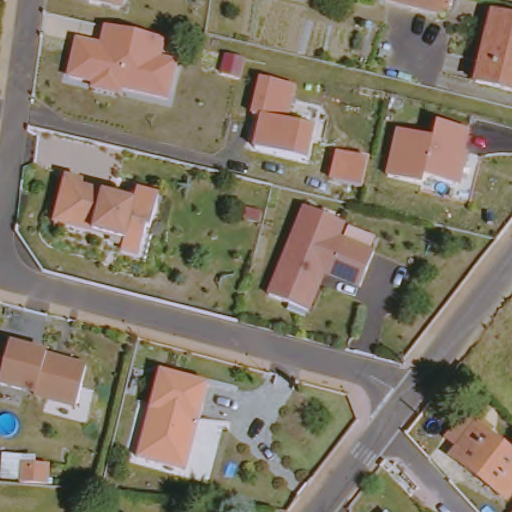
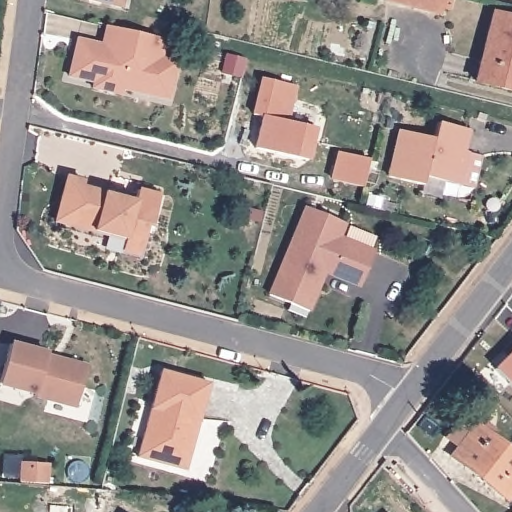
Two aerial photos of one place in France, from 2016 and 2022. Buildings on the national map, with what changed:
unchanged [(111,5),(93,0),(122,0),(120,7),(111,5)]
unchanged [(445,17),(394,4),(394,0),(449,0),(445,17)]
unchanged [(486,85),(500,17),(512,19),(512,91),(486,85)]
unchanged [(163,57),(179,62),(171,101),(123,90),(122,95),(94,88),(95,84),(68,77),(77,40),(103,44),(105,27),(168,41),(163,57)]
unchanged [(290,122),(317,129),(309,161),(255,150),(261,118),(253,116),(261,79),(298,89),(290,122)]
unchanged [(438,122),(471,132),(462,185),(427,177),(425,187),(387,177),(398,131),(434,140),(438,122)]
unchanged [(370,160),(361,190),(329,181),(336,153),(370,160)]
unchanged [(125,255),(126,249),(128,245),(58,226),(61,216),(69,183),(85,187),(84,192),(137,205),(140,194),(162,200),(153,232),(149,231),(145,253),(143,260),(125,255)]
unchanged [(300,305),(278,296),(313,209),(351,224),(346,239),(383,252),(369,286),(329,271),(326,280),(328,287),(322,300),(317,311),(300,305)]
unchanged [(76,410),(37,399),(38,395),(1,386),(12,346),(49,357),(48,359),(59,362),(88,370),(76,410)]
new [(494,367),(512,349),(512,386),(494,367)]
unchanged [(181,468),(144,457),(168,371),(217,385),(206,423),(193,471),(181,468)]
unchanged [(512,500),(456,457),(482,425),(512,449),(512,500)]
unchanged [(14,463),(26,464),(27,458),(40,459),(38,479),(13,476),(14,463)]

